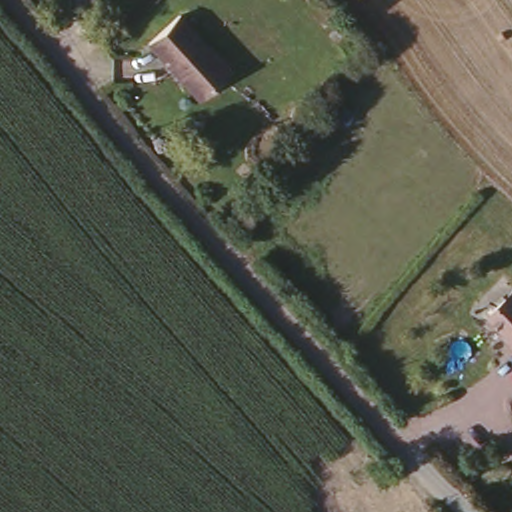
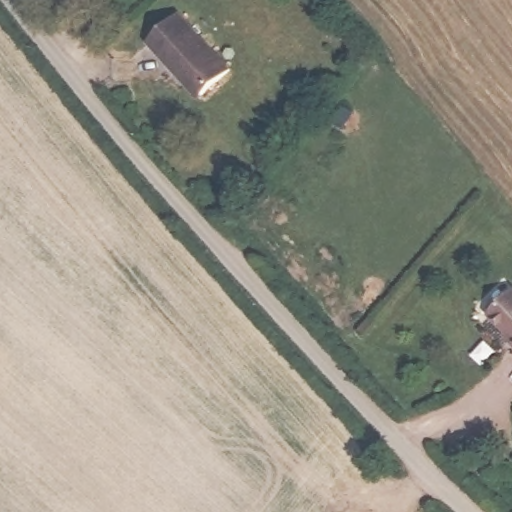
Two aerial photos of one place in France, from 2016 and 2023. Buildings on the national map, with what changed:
unchanged [(180,13),(230,73),(194,103),(143,45),(180,13)]
unchanged [(490,313),(512,293),(512,339),(505,333),(507,330),(490,313)]

